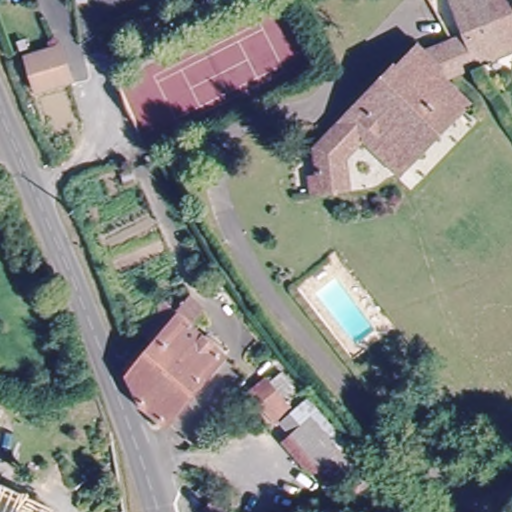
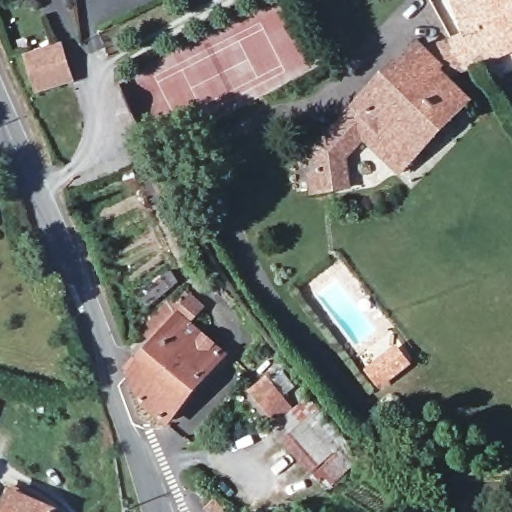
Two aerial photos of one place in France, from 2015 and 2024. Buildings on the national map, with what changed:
unchanged [(512,0),(512,44),(479,60),(466,65),(451,39),(468,31),(454,0),(512,0)]
unchanged [(40,77),(34,61),(29,46),(59,34),(64,46),(71,65),(40,77)]
unchanged [(447,75),(464,92),(392,167),(362,140),(346,155),(348,185),(309,187),(309,172),(317,172),(314,144),(419,40),(428,49),(451,39),(466,65),(447,75)]
unchanged [(226,354),(168,430),(136,407),(121,376),(176,310),(226,354)]
unchanged [(260,380),(287,412),(270,426),(243,393),(260,380)]
unchanged [(304,421),(346,467),(324,487),(281,440),(304,421)]
unchanged [(51,511),(51,512),(0,512),(0,510),(9,491),(51,511)]

